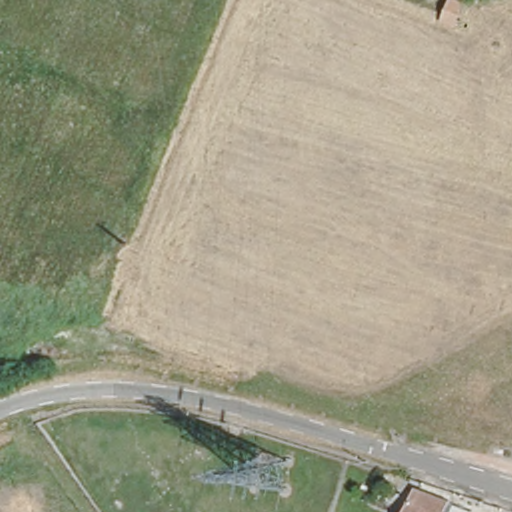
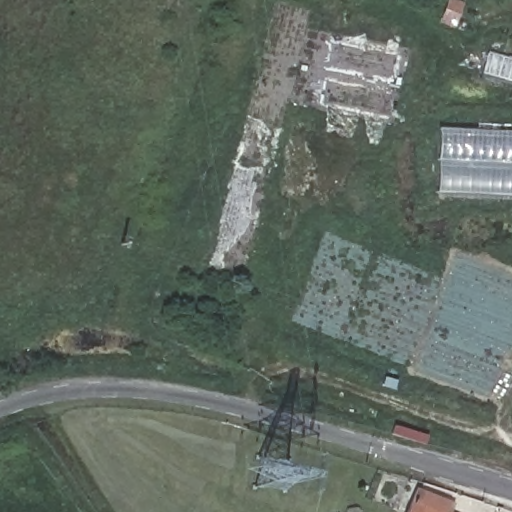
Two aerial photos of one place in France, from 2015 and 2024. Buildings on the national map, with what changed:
new [(439,128),(512,131),(512,195),(437,192),(439,128)]
unchanged [(416,489),(446,502),(442,512),(405,512),(416,489)]

